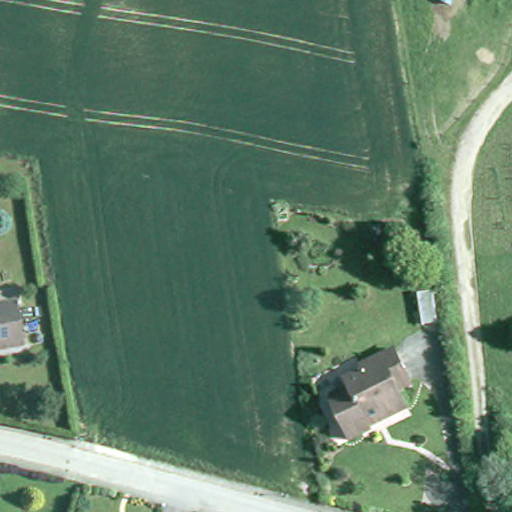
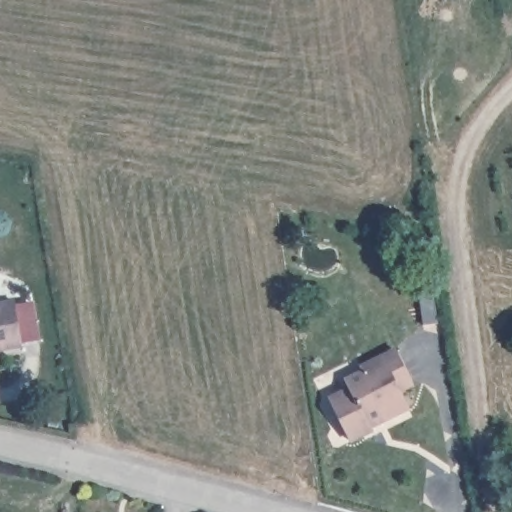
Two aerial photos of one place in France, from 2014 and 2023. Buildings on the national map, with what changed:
unchanged [(8,300),(15,340),(0,343),(0,301),(8,300)]
unchanged [(336,385),(353,376),(352,373),(385,354),(402,386),(390,393),(400,412),(379,424),(375,418),(358,427),(362,434),(343,445),(321,404),(341,394),(336,385)]

